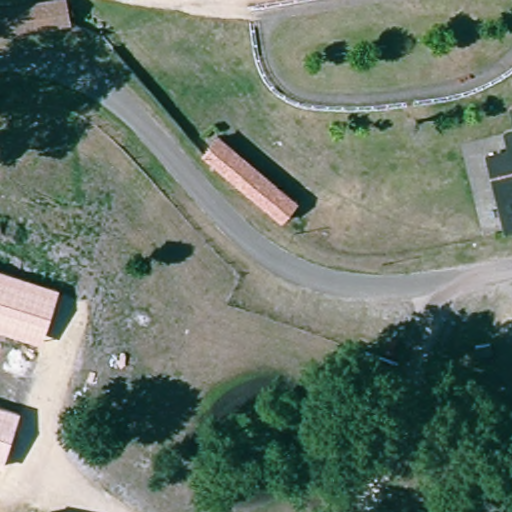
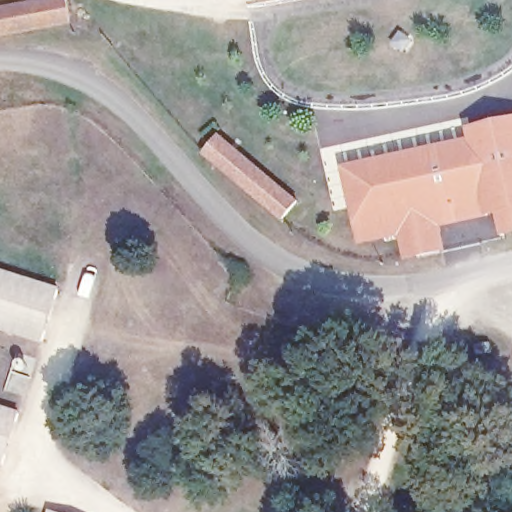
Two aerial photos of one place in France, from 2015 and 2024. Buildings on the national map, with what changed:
unchanged [(29,1),(35,0),(68,0),(72,19),(0,31),(0,7),(29,1)]
demolished [(512,104),(512,106),(511,104),(512,104)]
new [(465,126),(512,117),(512,234),(501,236),(496,212),(485,216),(441,226),(446,250),(404,259),(398,236),(357,245),(340,166),(468,139),(465,126)]
demolished [(493,155),(510,151),(505,129),(512,127),(512,225),(508,226),(493,155)]
unchanged [(223,131),(300,197),(283,216),(207,149),(223,131)]
unchanged [(59,288),(42,342),(0,329),(0,270),(59,288)]
unchanged [(460,345),(462,356),(453,357),(450,346),(460,345)]
unchanged [(20,411),(3,466),(0,465),(0,405),(20,411)]
unchanged [(49,512),(50,510),(58,512),(49,512)]

